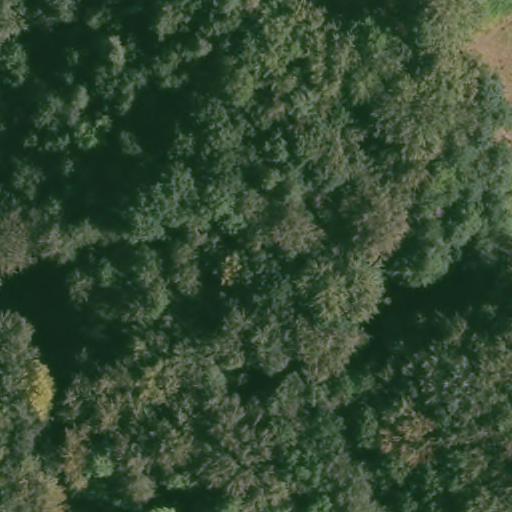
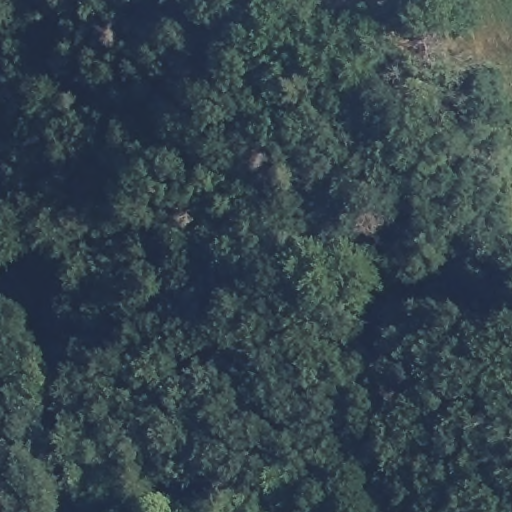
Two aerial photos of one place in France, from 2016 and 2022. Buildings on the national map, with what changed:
[]

